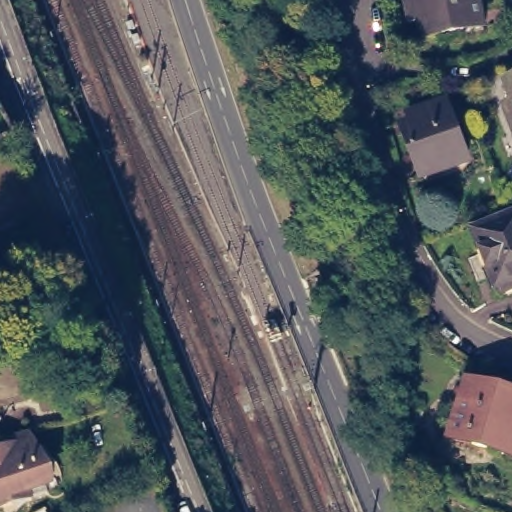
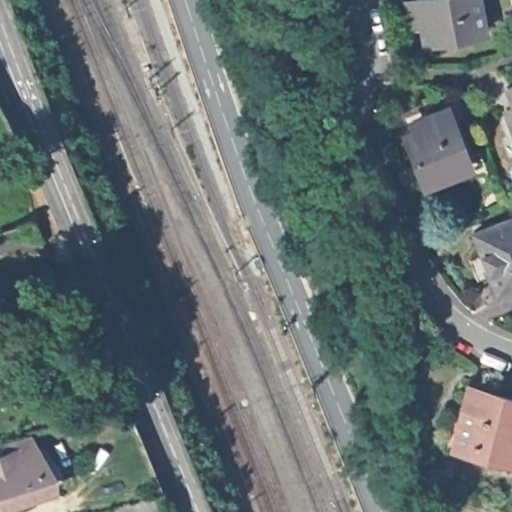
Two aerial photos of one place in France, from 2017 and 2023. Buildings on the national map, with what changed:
unchanged [(425,42),(422,23),(412,25),(407,0),(479,0),(485,31),(425,42)]
unchanged [(511,76),(512,76),(512,79),(511,76)]
unchanged [(510,98),(512,98),(512,104),(510,98)]
unchanged [(407,116),(441,103),(462,159),(420,176),(402,129),(412,125),(407,116)]
unchanged [(502,287),(500,282),(496,281),(473,221),(512,206),(512,283),(502,287)]
unchanged [(458,437),(473,380),(512,391),(512,452),(458,437)]
unchanged [(0,510),(0,453),(17,447),(32,443),(41,470),(45,468),(47,468),(50,470),(52,472),(54,474),(55,476),(54,479),(52,482),(51,483),(50,484),(46,485),(50,494),(33,499),(0,510)]

